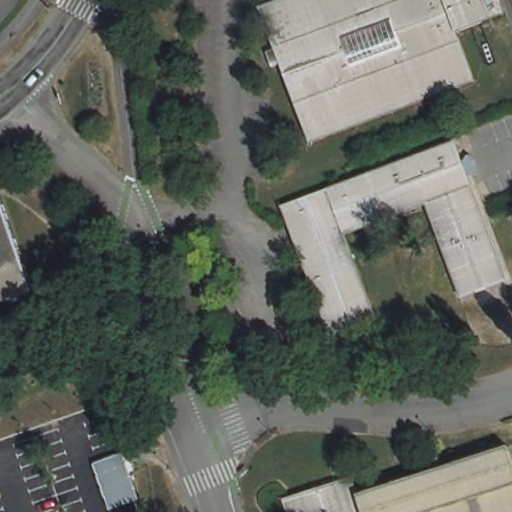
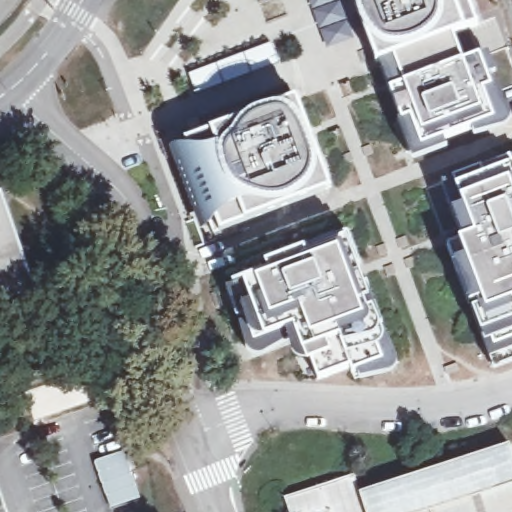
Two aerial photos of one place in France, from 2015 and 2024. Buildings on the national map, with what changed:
demolished [(477,81),(312,145),(261,8),(281,0),(502,0),(508,16),(460,34),(477,81)]
new [(421,148),(410,119),(401,121),(390,91),(403,86),(393,56),(376,63),(352,0),(464,0),(473,26),(462,30),(452,34),(462,65),(478,59),(490,89),(481,91),(492,121),(421,148)]
new [(215,213),(206,217),(185,159),(193,156),(187,142),(213,133),(295,102),(328,191),(246,222),(221,232),(215,213)]
demolished [(503,279),(458,297),(423,203),(382,219),(341,235),(376,327),(331,344),(280,208),(366,175),(450,143),(503,279)]
new [(452,180),(480,169),(512,156),(512,169),(484,179),(455,189),(452,180)]
new [(484,179),(512,169),(512,351),(490,359),(486,344),(480,333),(470,305),(454,263),(448,248),(460,242),(450,213),(463,208),(460,201),(455,189),(484,179)]
unchanged [(0,194),(2,193),(36,290),(0,303),(0,194)]
new [(268,274),(266,266),(304,253),(305,256),(345,241),(368,300),(364,301),(368,312),(372,310),(377,322),(383,334),(384,339),(382,344),(378,348),(376,350),(380,362),(352,373),(350,368),(317,380),(307,350),(302,352),(294,328),(264,339),(243,283),(268,274)]
unchanged [(328,511),(326,512),(290,512),(286,499),(355,476),(360,494),(510,447),(512,454),(512,512),(329,512),(328,511)]
unchanged [(125,454),(126,457),(130,456),(136,474),(131,476),(140,503),(113,512),(109,512),(95,464),(125,454)]

